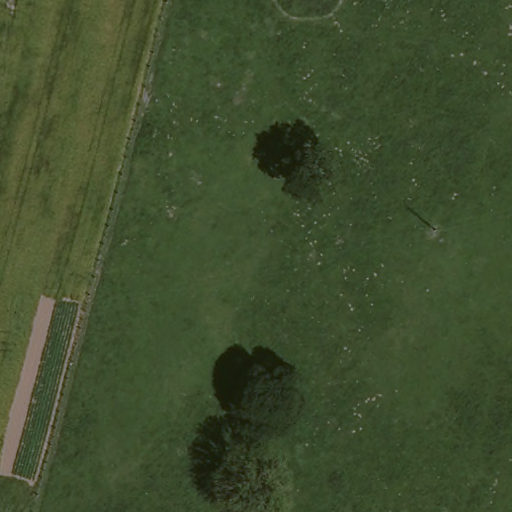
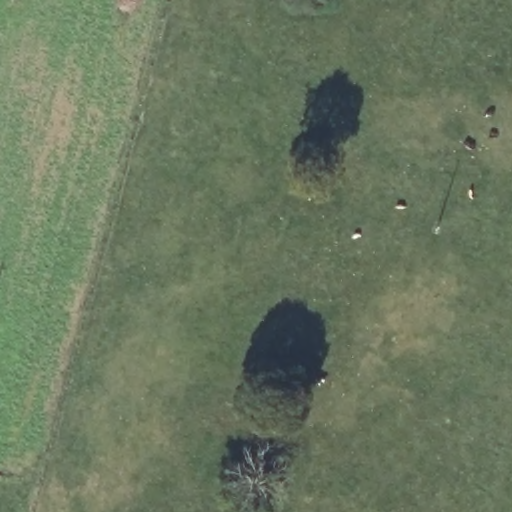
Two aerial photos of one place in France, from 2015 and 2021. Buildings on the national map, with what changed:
[]

